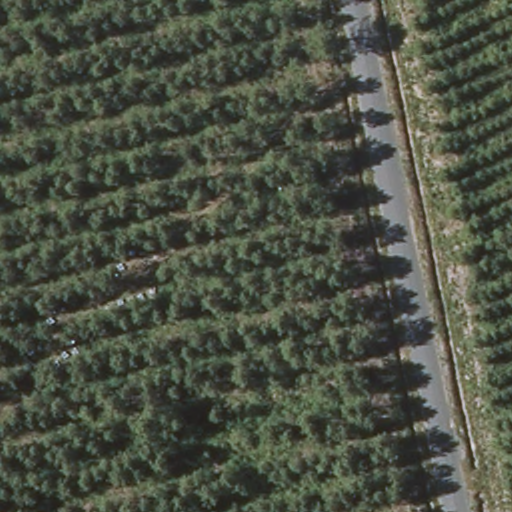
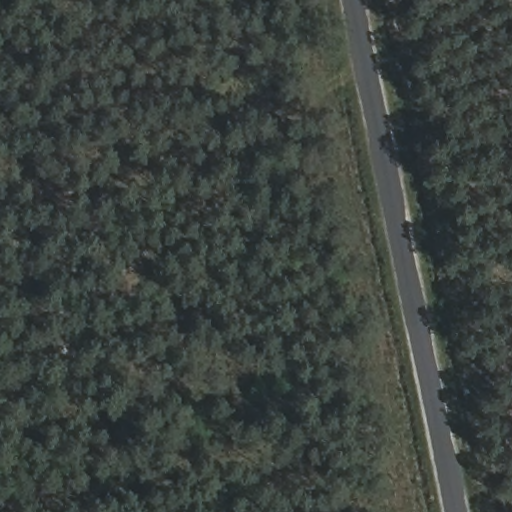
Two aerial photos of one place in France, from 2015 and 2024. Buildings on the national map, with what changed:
unchanged [(43,512),(42,505),(97,495),(99,512),(43,512)]

